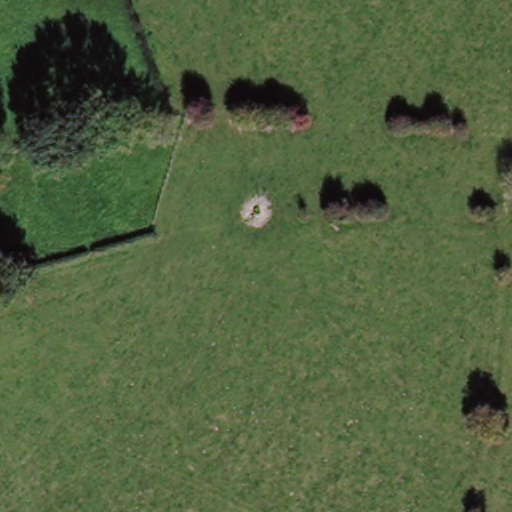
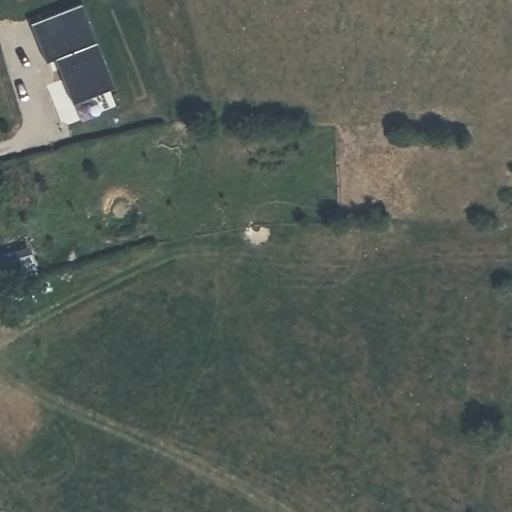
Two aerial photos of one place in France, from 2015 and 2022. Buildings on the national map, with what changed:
new [(81,3),(116,87),(72,105),(58,71),(62,69),(58,59),(45,64),(29,25),(81,3)]
unchanged [(32,281),(0,289),(0,270),(27,264),(32,281)]

